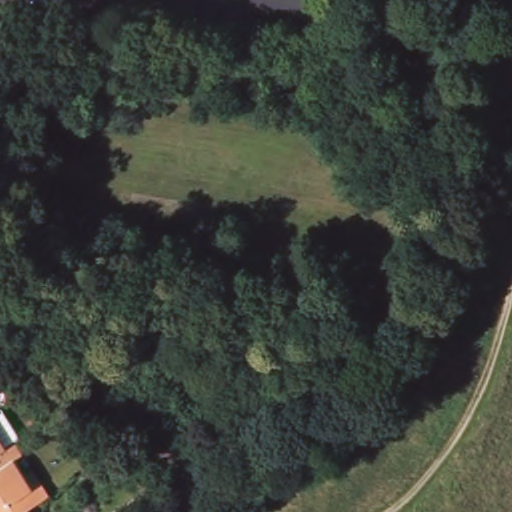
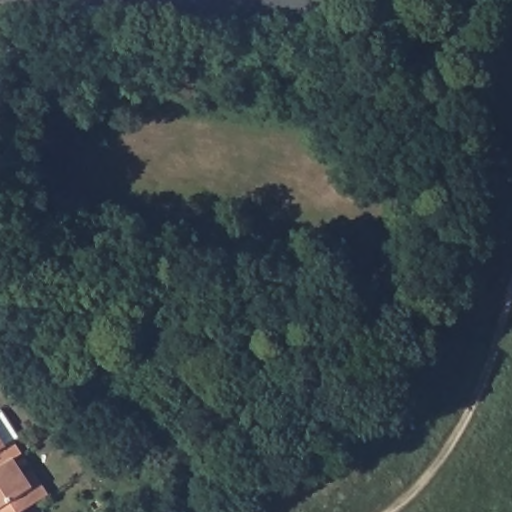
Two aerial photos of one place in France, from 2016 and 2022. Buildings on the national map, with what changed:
unchanged [(11,438),(19,451),(10,457),(0,464),(0,427),(3,425),(11,438)]
unchanged [(29,464),(37,478),(44,490),(16,509),(11,512),(0,512),(0,464),(10,457),(19,470),(29,464)]
unchanged [(18,512),(11,512),(16,509),(18,512)]

